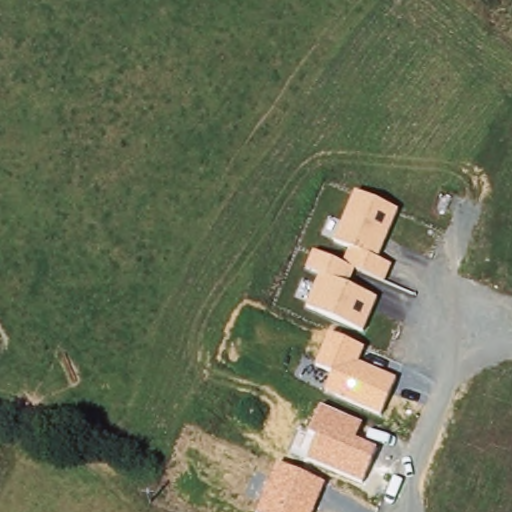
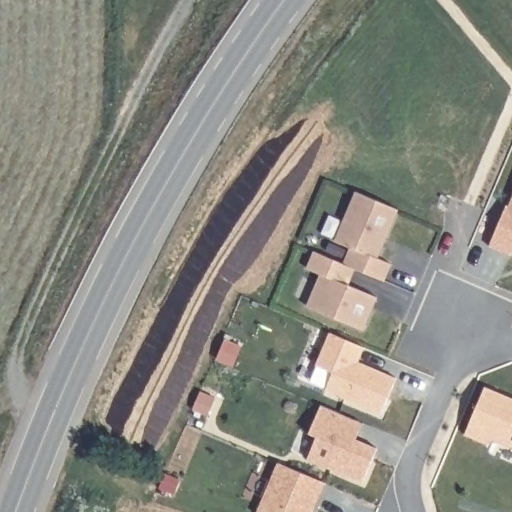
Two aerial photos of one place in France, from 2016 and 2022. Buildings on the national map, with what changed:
unchanged [(398,209),(378,257),(392,263),(385,282),(355,272),(350,286),(378,298),(365,332),(306,307),(320,275),(307,268),(313,252),(342,263),(349,247),(335,242),(356,192),(398,209)]
new [(490,245),(506,205),(508,206),(512,197),(512,250),(511,254),(490,245)]
unchanged [(365,347),(357,361),(397,377),(381,413),(325,390),(331,372),(316,365),(330,333),(365,347)]
new [(487,443),(465,435),(485,387),(512,398),(512,447),(490,438),(487,443)]
unchanged [(362,422),(355,441),(379,450),(364,483),(308,460),(317,441),(308,437),(321,407),(362,422)]
unchanged [(324,481),(313,512),(259,512),(276,462),(324,481)]

